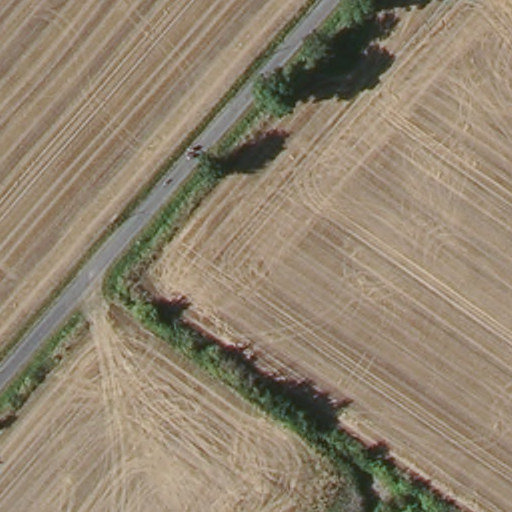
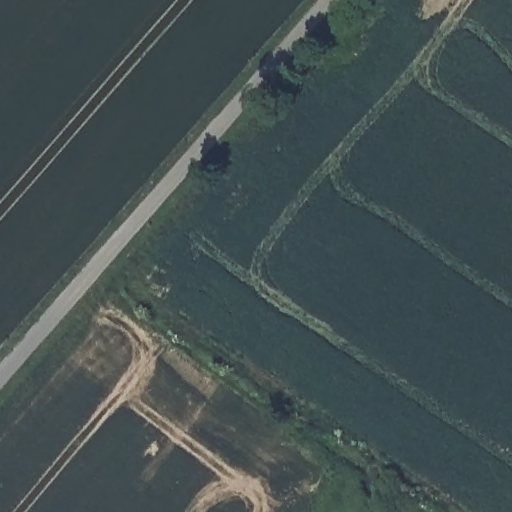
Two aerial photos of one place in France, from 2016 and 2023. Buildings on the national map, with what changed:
[]

